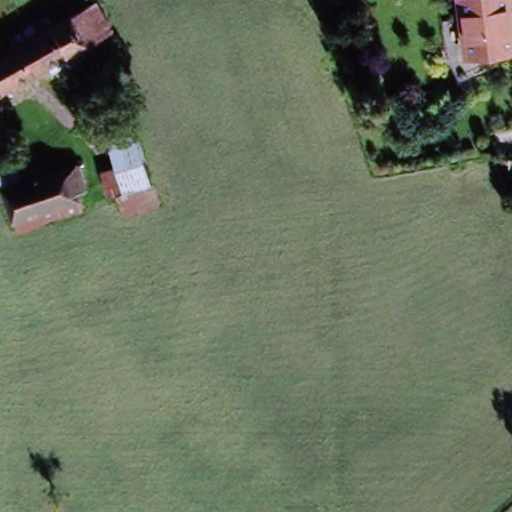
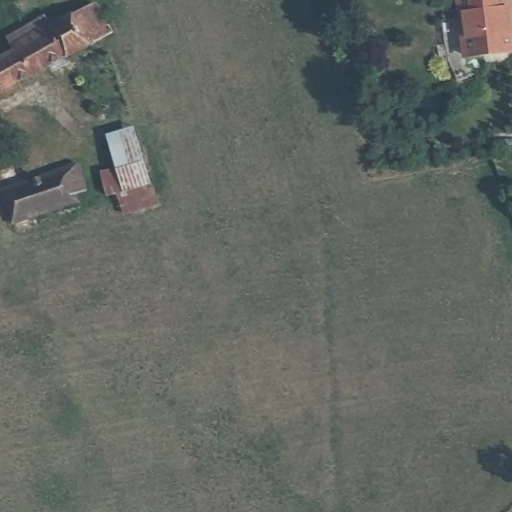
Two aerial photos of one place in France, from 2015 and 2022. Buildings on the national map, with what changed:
unchanged [(512,44),(512,50),(463,54),(458,0),(508,0),(512,44)]
unchanged [(35,36),(55,26),(79,14),(100,3),(116,34),(106,38),(95,44),(72,57),(70,54),(0,94),(0,63),(22,50),(20,43),(35,36)]
unchanged [(115,215),(95,171),(107,167),(97,114),(131,105),(163,204),(115,215)]
unchanged [(75,195),(82,214),(10,232),(0,206),(0,155),(15,151),(18,172),(77,158),(86,191),(75,195)]

